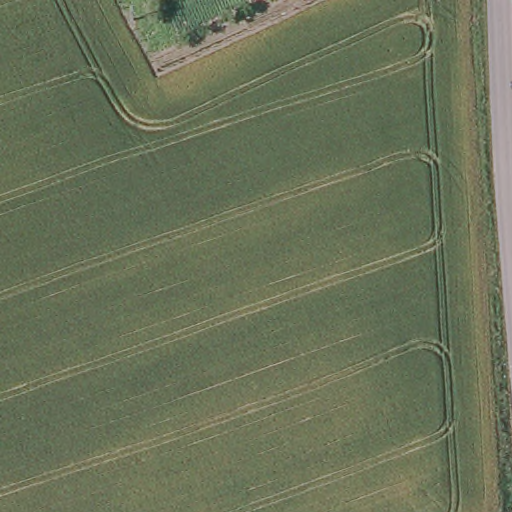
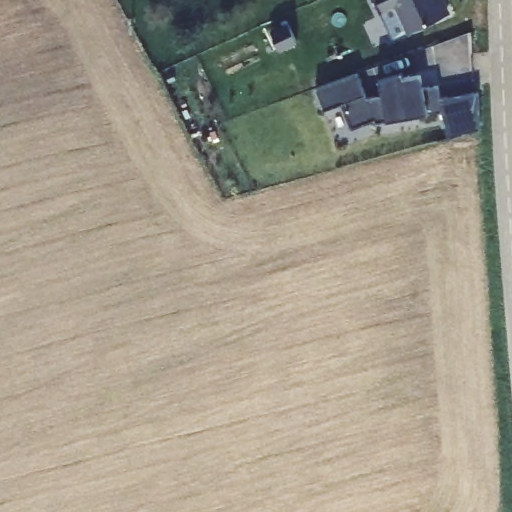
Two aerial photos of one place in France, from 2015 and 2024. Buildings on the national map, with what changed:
new [(406,35),(396,15),(400,13),(397,7),(379,16),(372,0),(439,0),(447,16),(406,35)]
new [(357,74),(367,99),(382,96),(380,87),(378,81),(402,72),(404,77),(421,74),(424,89),(439,87),(440,99),(479,92),(481,131),(449,139),(442,112),(375,124),(374,122),(350,130),(341,105),(324,112),(315,89),(357,74)]

